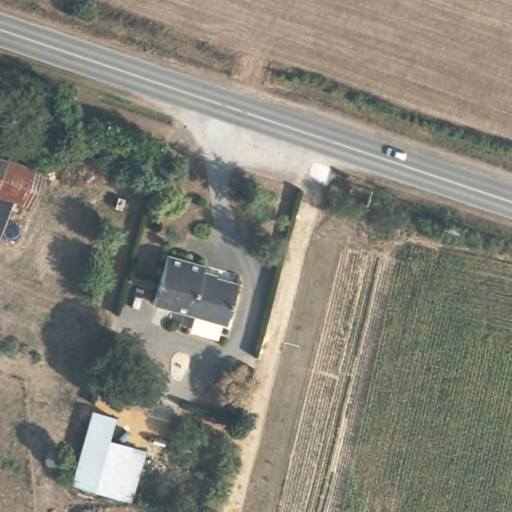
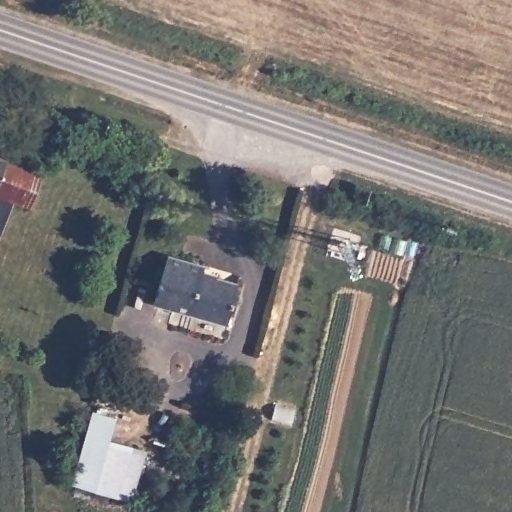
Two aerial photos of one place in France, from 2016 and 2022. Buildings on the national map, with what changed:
unchanged [(29,203),(13,197),(0,229),(0,152),(42,168),(29,203)]
unchanged [(227,320),(155,300),(170,251),(206,261),(204,267),(240,278),(227,320)]
unchanged [(91,405),(115,413),(110,436),(146,446),(132,498),(71,482),(91,405)]

